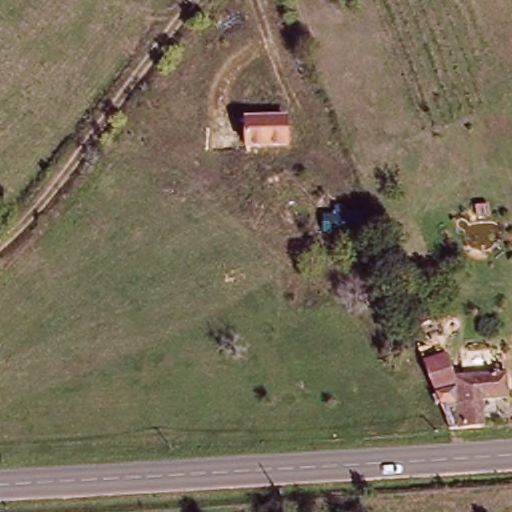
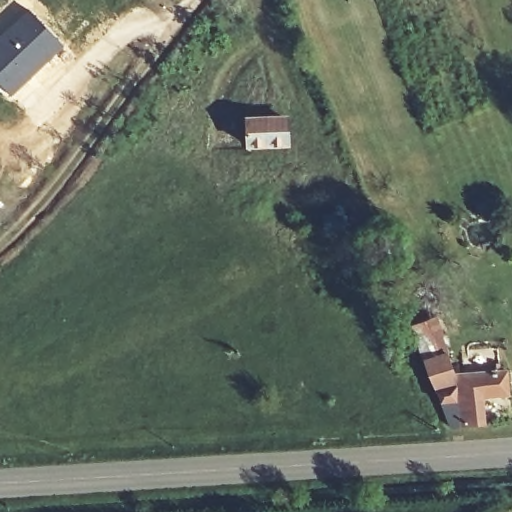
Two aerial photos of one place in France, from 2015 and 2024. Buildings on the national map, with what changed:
new [(64,46),(10,96),(0,85),(0,37),(29,10),(64,46)]
unchanged [(282,121),(283,147),(242,147),(243,122),(282,121)]
unchanged [(484,421),(443,424),(412,325),(438,319),(458,371),(509,371),(509,394),(477,397),(484,421)]

